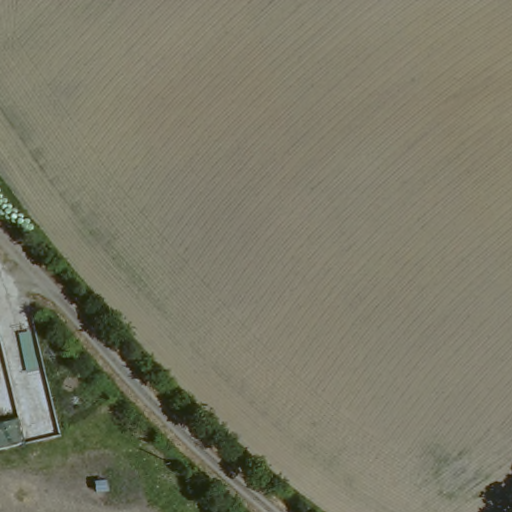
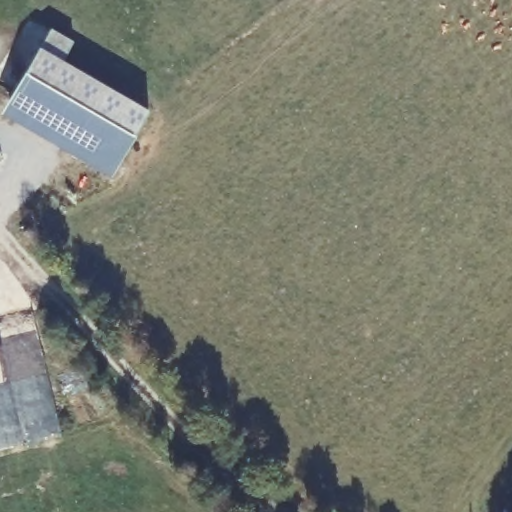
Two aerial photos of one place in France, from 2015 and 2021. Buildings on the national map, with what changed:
new [(46,30),(69,44),(59,62),(145,112),(115,165),(5,102),(46,30)]

